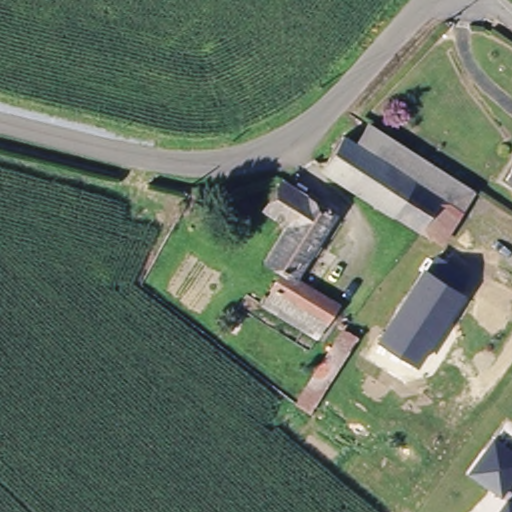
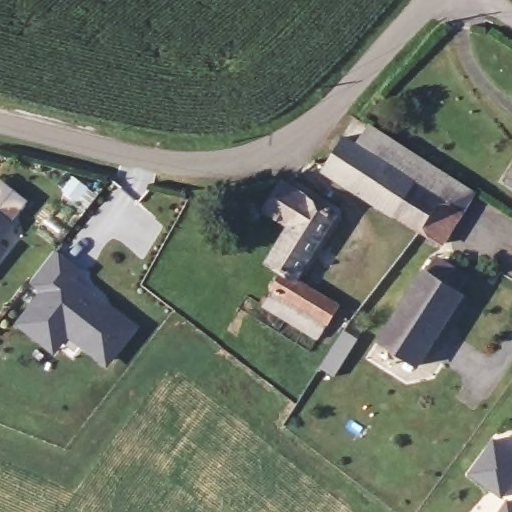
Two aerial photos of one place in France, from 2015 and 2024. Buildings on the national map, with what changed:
unchanged [(448,200),(358,144),(372,124),(459,180),(448,200)]
unchanged [(425,234),(325,173),(347,137),(358,144),(448,200),(425,234)]
unchanged [(503,171),(512,160),(512,179),(503,171)]
new [(76,178),(87,187),(77,199),(66,189),(76,178)]
unchanged [(476,191),(446,246),(425,234),(448,200),(459,180),(476,191)]
unchanged [(272,288),(282,271),(267,261),(285,226),(263,210),(286,181),(338,216),(301,279),(344,306),(331,326),(275,292),(272,288)]
new [(0,241),(0,212),(15,223),(0,241)]
new [(0,259),(0,243),(7,249),(0,259)]
new [(45,291),(32,280),(55,251),(80,271),(72,280),(99,301),(97,303),(104,308),(107,304),(136,326),(110,360),(86,341),(84,344),(68,333),(54,350),(20,323),(24,318),(45,291)]
unchanged [(457,293),(461,300),(415,373),(375,347),(422,271),(427,274),(438,264),(464,280),(457,293)]
unchanged [(331,326),(321,343),(265,307),(275,292),(331,326)]
unchanged [(358,336),(308,413),(295,403),(341,326),(358,336)]
unchanged [(512,449),(512,481),(501,497),(468,472),(493,436),(512,449)]
unchanged [(512,500),(512,512),(498,512),(508,498),(512,500)]

